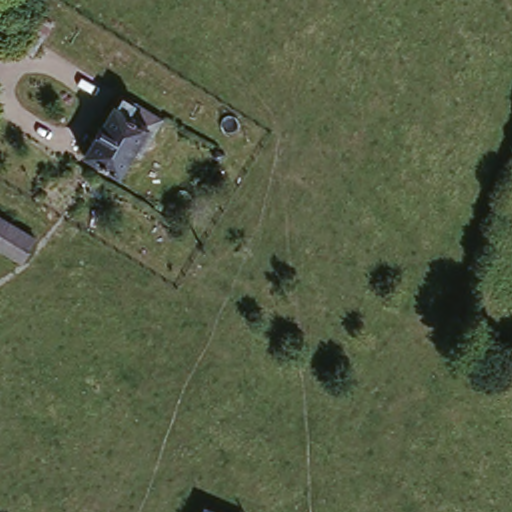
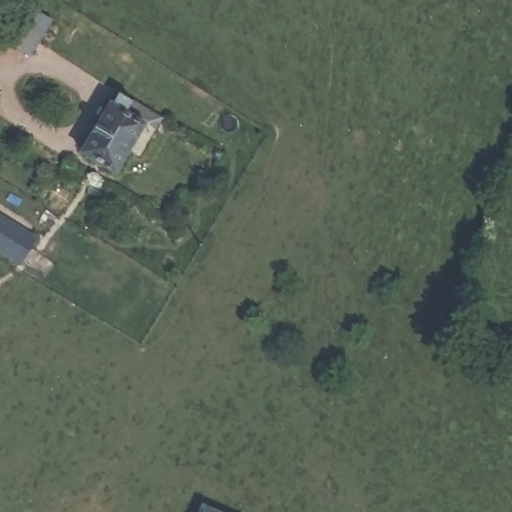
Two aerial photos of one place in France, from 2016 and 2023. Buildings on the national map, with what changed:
unchanged [(57,26),(37,58),(10,42),(31,9),(57,26)]
unchanged [(156,114),(134,151),(125,145),(108,171),(77,152),(116,89),(156,114)]
unchanged [(25,257),(0,243),(0,213),(38,235),(25,257)]

